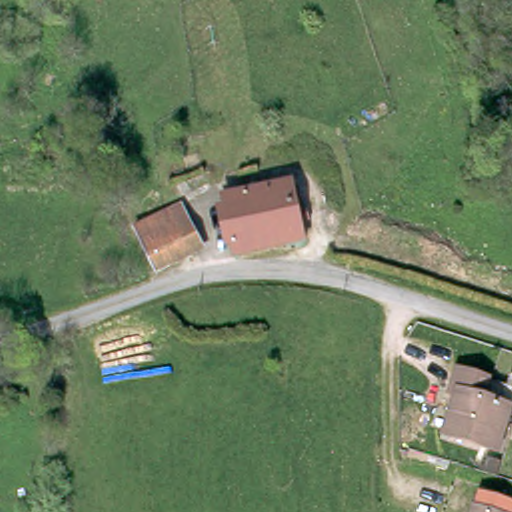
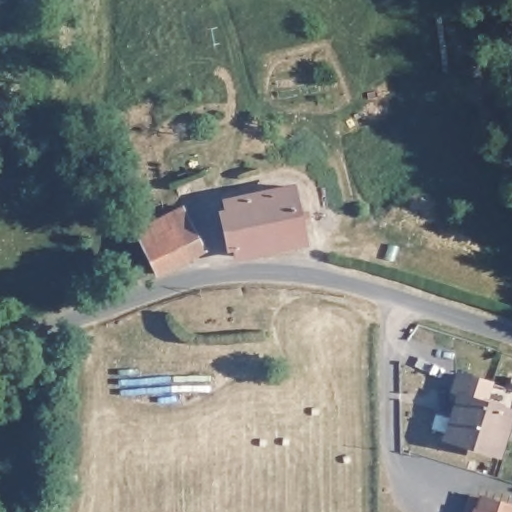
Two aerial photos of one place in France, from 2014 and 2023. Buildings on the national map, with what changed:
unchanged [(287,185),(299,241),(229,257),(214,201),(287,185)]
unchanged [(137,231),(182,214),(188,234),(195,252),(150,269),(143,250),(137,231)]
unchanged [(495,458),(437,437),(447,395),(440,393),(452,367),(490,378),(481,398),(510,404),(495,458)]
unchanged [(512,506),(512,512),(468,512),(475,494),(512,506)]

